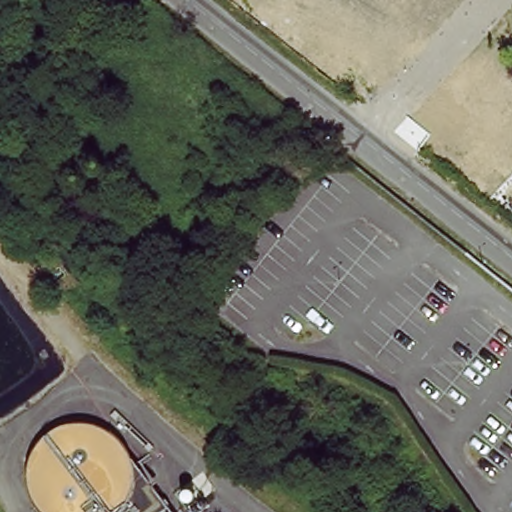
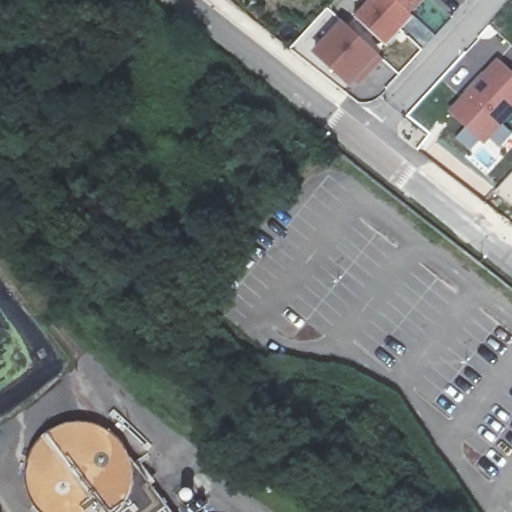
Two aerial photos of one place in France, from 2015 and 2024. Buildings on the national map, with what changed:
new [(376,49),(348,21),(369,0),(392,0),(408,15),(376,49)]
new [(392,0),(422,0),(408,15),(392,0)]
new [(381,60),(359,84),(354,80),(347,86),(314,56),(342,25),(381,60)]
new [(512,115),(484,146),(450,115),(497,65),(512,78),(512,115)]
unchanged [(437,161),(425,153),(435,141),(447,150),(437,161)]

